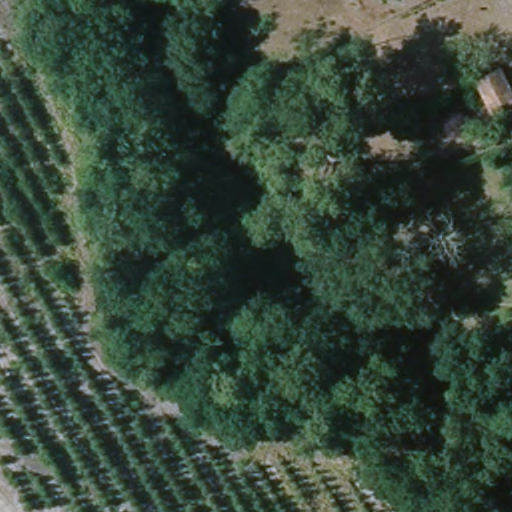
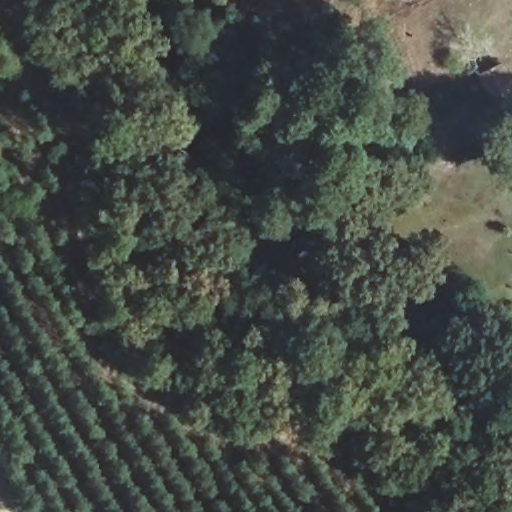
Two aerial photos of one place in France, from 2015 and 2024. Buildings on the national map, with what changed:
unchanged [(491,112),(487,104),(472,72),(497,61),(512,92),(512,93),(512,101),(491,112)]
unchanged [(267,150),(265,142),(275,139),(277,147),(267,150)]

